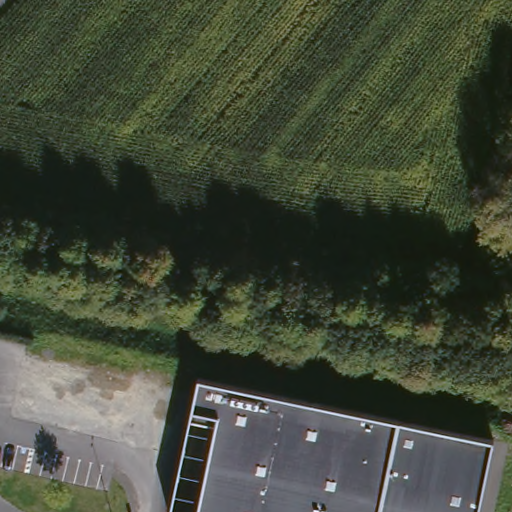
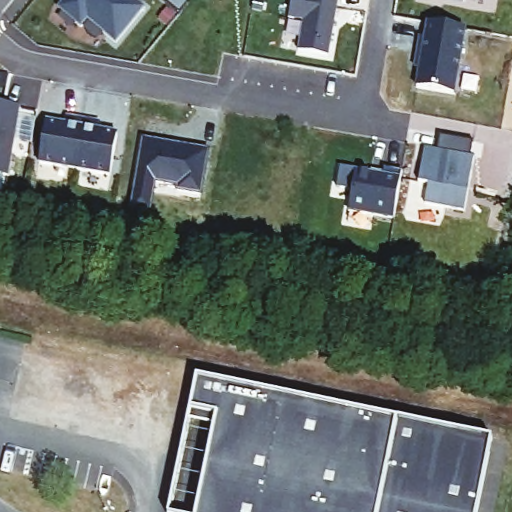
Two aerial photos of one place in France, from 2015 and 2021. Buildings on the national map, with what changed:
new [(66,0),(131,0),(144,10),(115,45),(87,21),(80,30),(57,10),(66,0)]
new [(461,1),(456,0),(462,0),(461,1)]
new [(418,37),(423,38),(426,22),(463,29),(451,94),(414,87),(417,68),(413,67),(418,37)]
new [(20,109),(9,176),(0,175),(0,105),(20,109)]
new [(45,120),(66,124),(66,117),(101,125),(100,131),(117,134),(110,176),(40,165),(45,120)]
new [(424,149),(435,151),(438,135),(473,141),(470,158),(473,159),(464,211),(424,204),(427,184),(418,182),(421,160),(424,149)]
new [(348,210),(352,189),(336,186),(340,167),(356,170),(383,175),(385,168),(402,171),(400,179),(392,218),(348,210)]
unchanged [(164,512),(191,379),(485,439),(469,512),(164,512)]

